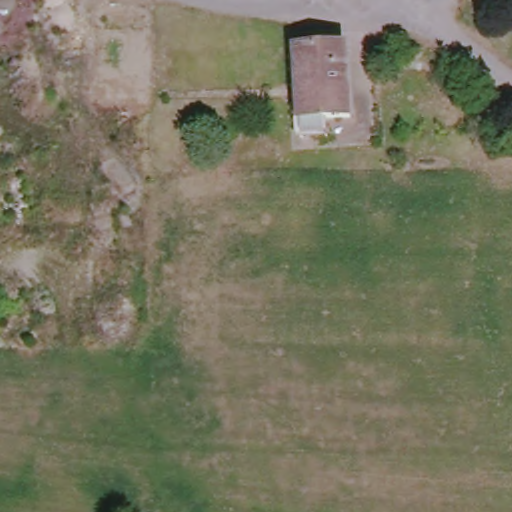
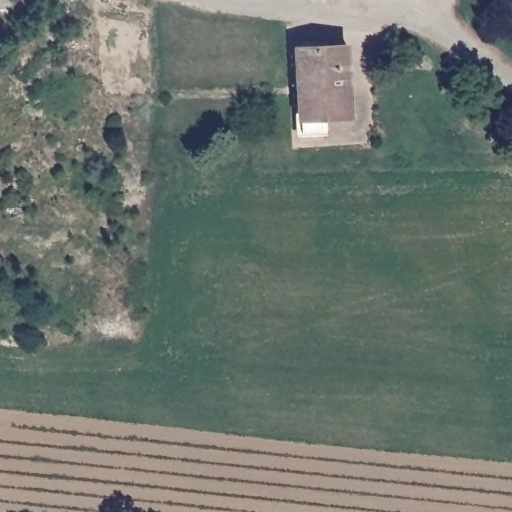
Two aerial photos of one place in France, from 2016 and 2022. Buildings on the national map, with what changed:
unchanged [(350,112),(328,113),(328,132),(301,132),(298,42),(347,41),(350,112)]

